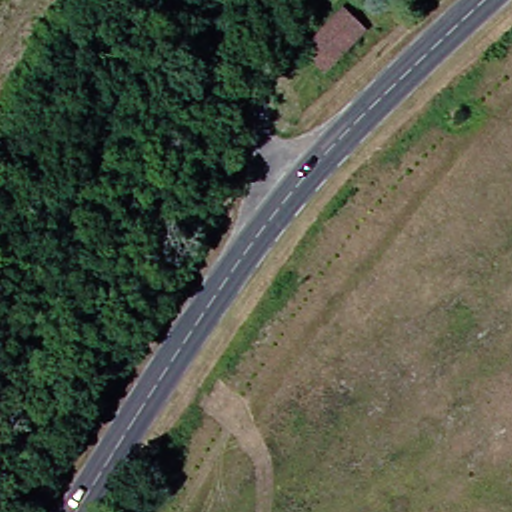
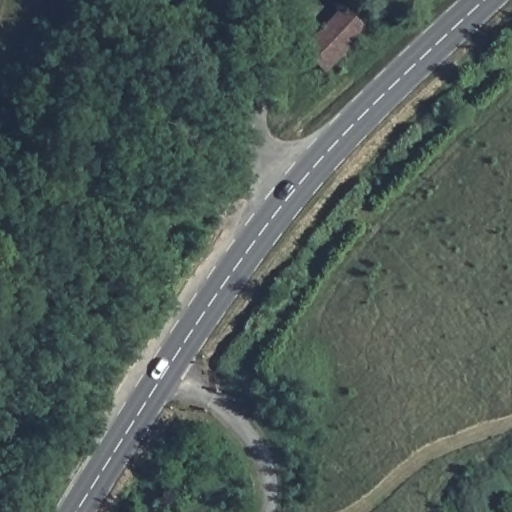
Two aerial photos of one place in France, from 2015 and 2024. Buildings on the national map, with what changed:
unchanged [(308,52),(350,8),(372,29),(330,72),(308,52)]

